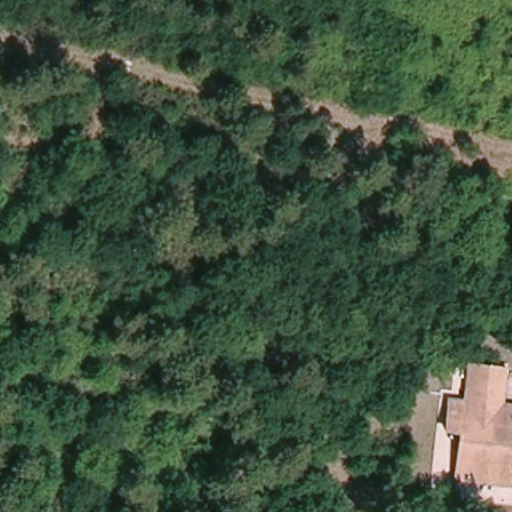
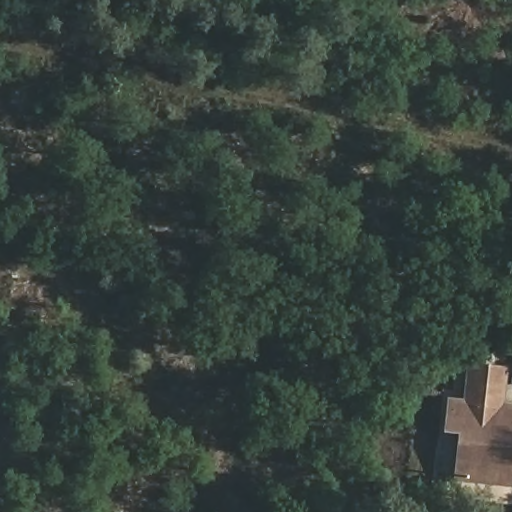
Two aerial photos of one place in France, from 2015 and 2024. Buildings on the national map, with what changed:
unchanged [(453,484),(455,432),(442,431),(445,393),(462,394),(465,358),(507,363),(502,401),(512,401),(512,490),(453,484)]

